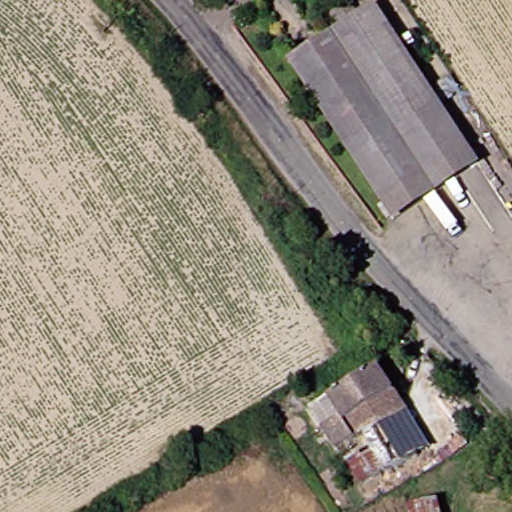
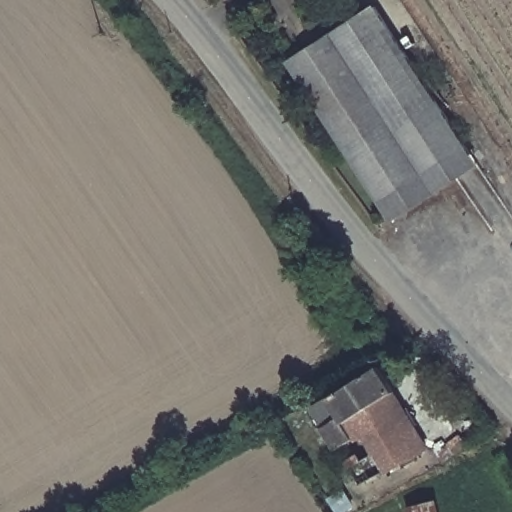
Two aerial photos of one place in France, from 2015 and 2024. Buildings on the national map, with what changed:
unchanged [(369,4),(471,162),(385,216),(282,60),(369,4)]
unchanged [(353,458),(356,460),(360,461),(364,460),(367,458),(369,454),(369,450),(367,447),(364,445),(360,443),(356,444),(353,446),(351,450),(342,441),(332,446),(319,425),(336,415),(324,394),(373,362),(390,390),(398,405),(416,435),(425,449),(358,488),(342,463),(353,458)]
unchanged [(402,505),(432,500),(434,512),(404,512),(402,505)]

